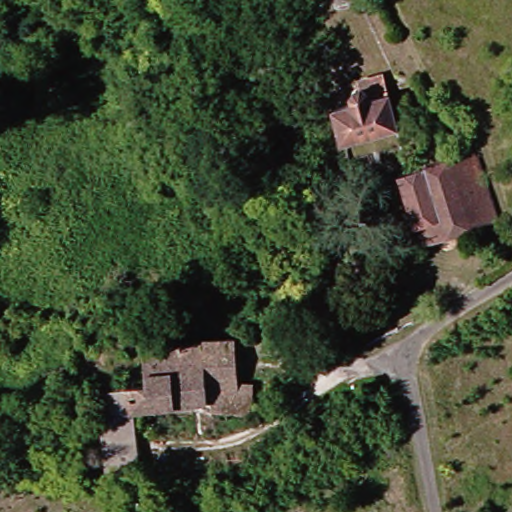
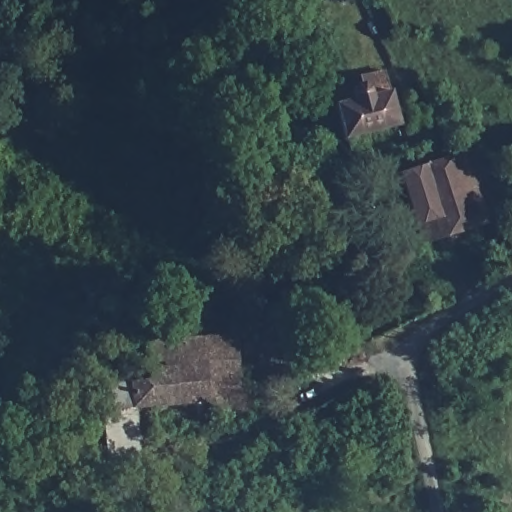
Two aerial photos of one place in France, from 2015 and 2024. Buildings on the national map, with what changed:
unchanged [(395,60),(407,123),(350,138),(339,93),(352,89),(352,91),(362,89),(359,68),(395,60)]
unchanged [(479,224),(457,156),(485,145),(507,214),(479,224)]
unchanged [(421,219),(408,172),(457,156),(479,224),(452,232),(427,240),(421,219)]
unchanged [(114,456),(112,424),(112,409),(110,384),(126,384),(126,344),(179,338),(180,379),(212,379),(229,378),(229,389),(229,407),(187,408),(186,397),(142,402),(144,422),(147,452),(149,465),(114,468),(114,456)]
unchanged [(212,339),(212,379),(180,379),(179,338),(212,339)]
unchanged [(240,339),(240,390),(229,389),(229,378),(212,379),(212,339),(240,339)]

